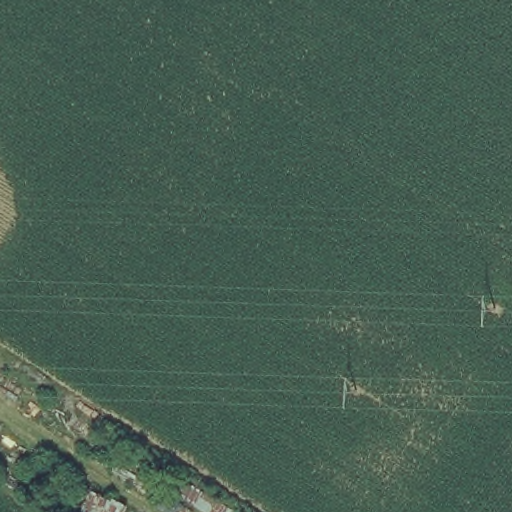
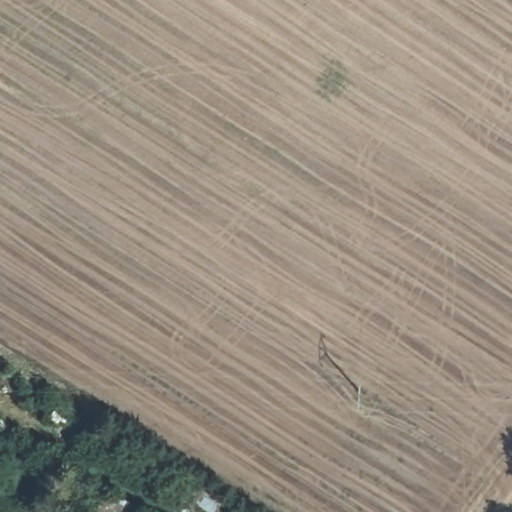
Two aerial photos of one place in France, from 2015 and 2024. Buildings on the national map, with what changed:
unchanged [(76,512),(92,486),(128,509),(127,512),(76,512)]

